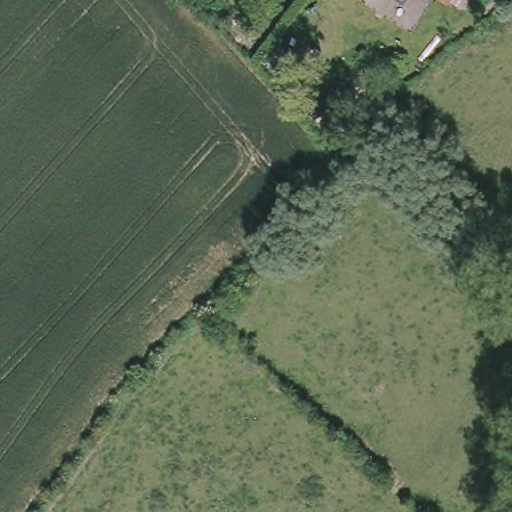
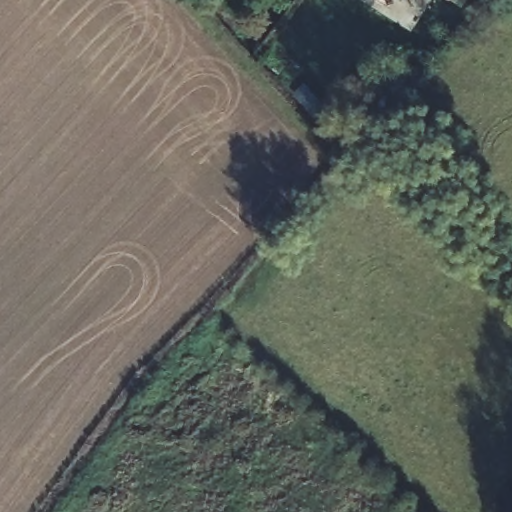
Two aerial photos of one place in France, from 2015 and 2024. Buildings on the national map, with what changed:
unchanged [(452,2),(448,0),(453,0),(452,2)]

